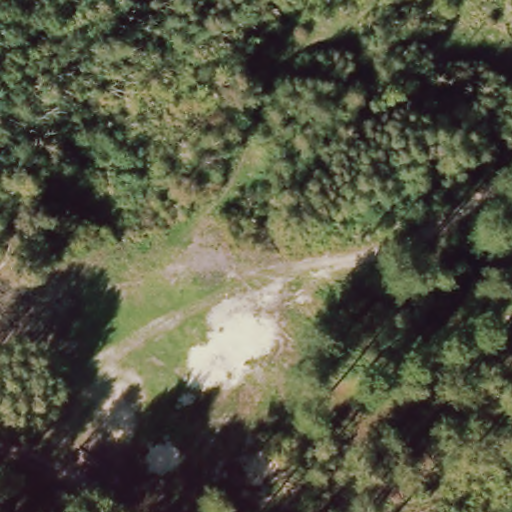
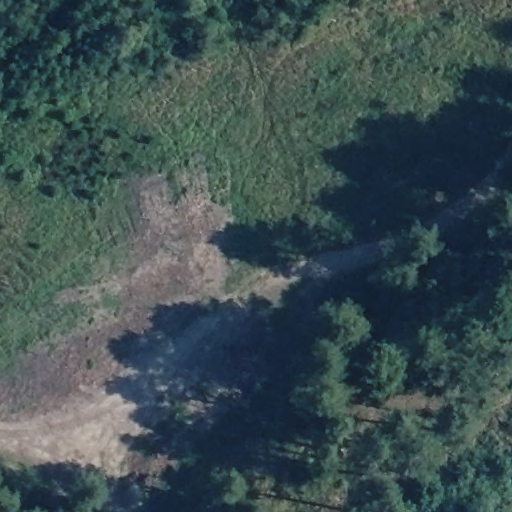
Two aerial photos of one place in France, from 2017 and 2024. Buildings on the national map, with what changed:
[]

